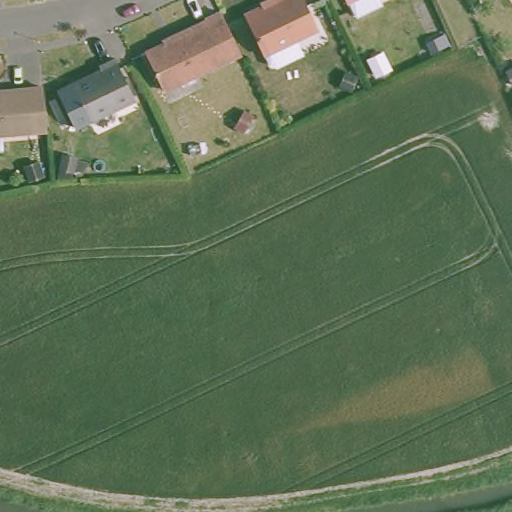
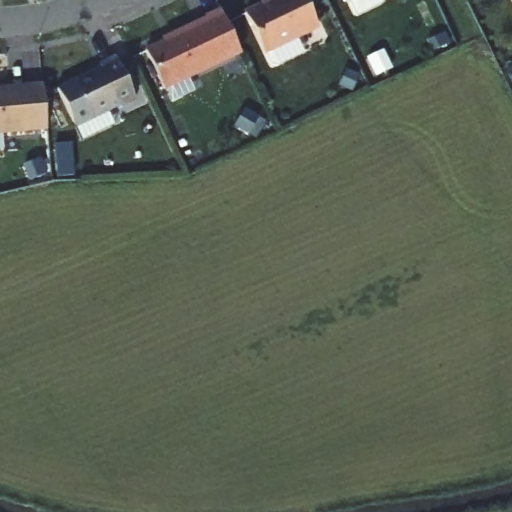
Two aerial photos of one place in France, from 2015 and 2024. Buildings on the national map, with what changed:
unchanged [(317,20),(262,47),(245,9),(261,0),(308,0),(317,20)]
unchanged [(160,87),(142,48),(202,24),(200,17),(220,11),(239,53),(160,87)]
unchanged [(104,64),(102,58),(117,52),(135,91),(90,111),(74,76),(104,64)]
unchanged [(0,84),(40,80),(45,125),(0,129),(0,84)]

